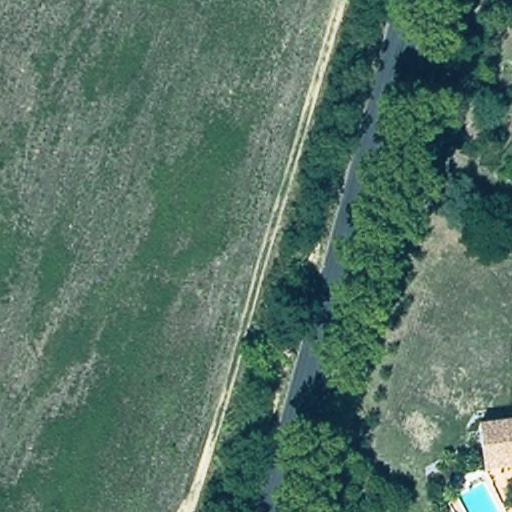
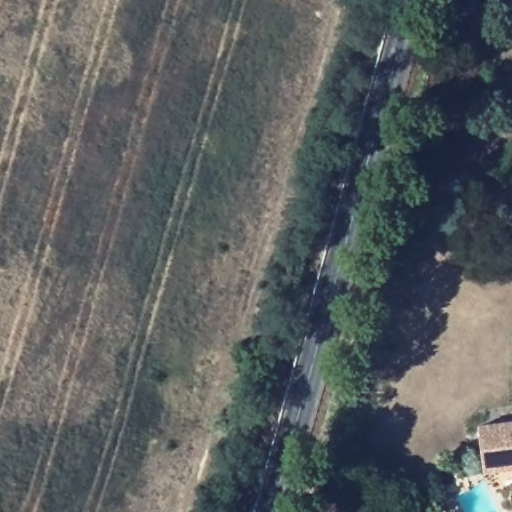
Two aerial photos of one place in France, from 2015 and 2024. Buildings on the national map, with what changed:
unchanged [(478,428),(512,424),(512,468),(482,472),(478,428)]

